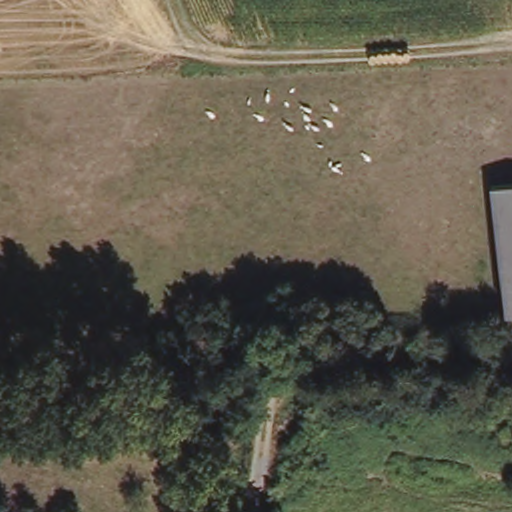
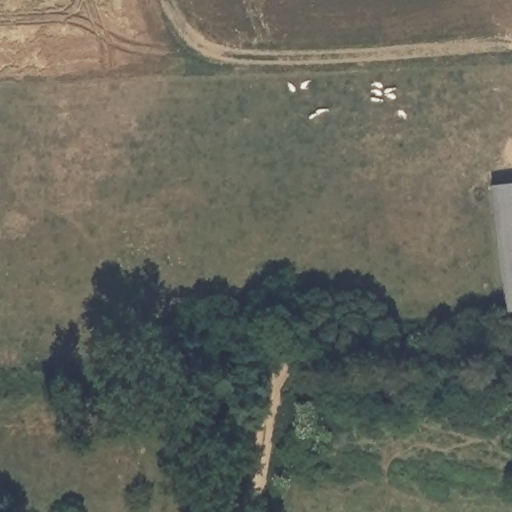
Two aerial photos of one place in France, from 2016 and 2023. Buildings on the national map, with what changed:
unchanged [(486,182),(512,179),(512,309),(498,311),(486,182)]

